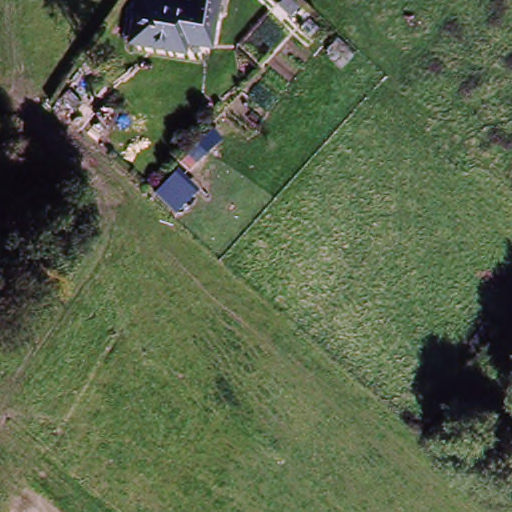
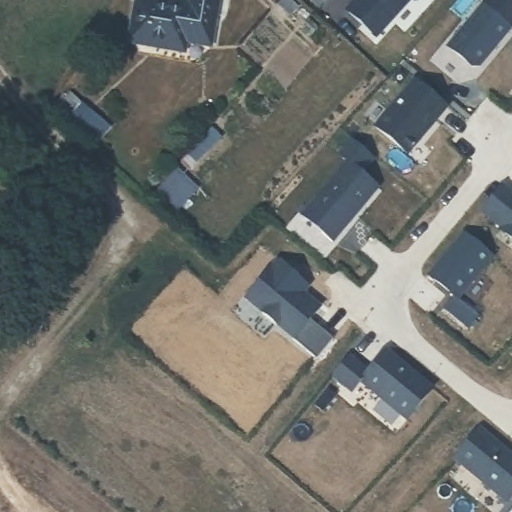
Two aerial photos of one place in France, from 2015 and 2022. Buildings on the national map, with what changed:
unchanged [(178,54),(127,43),(136,0),(152,0),(184,6),(185,0),(213,0),(202,49),(181,45),(178,54)]
new [(351,8),(358,0),(408,0),(378,33),(351,8)]
new [(512,26),(481,63),(474,63),(450,42),(485,0),(512,22),(512,26)]
new [(512,0),(512,22),(485,0),(512,0)]
new [(448,102),(409,149),(379,124),(418,77),(448,102)]
new [(332,238),(302,212),(348,158),(378,184),(332,238)]
new [(503,225),(484,209),(505,183),(512,188),(512,234),(502,226),(503,225)]
new [(459,296),(431,272),(466,230),(494,254),(459,296)]
new [(434,387),(409,416),(364,378),(355,388),(335,371),(350,353),(370,369),(387,348),(434,387)]
new [(457,455),(481,426),(512,452),(512,496),(509,499),(457,455)]

